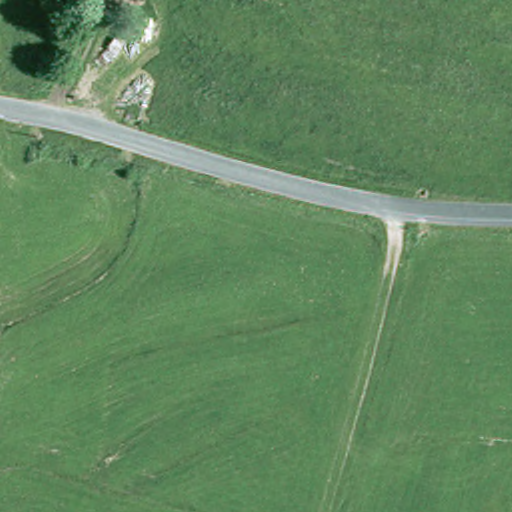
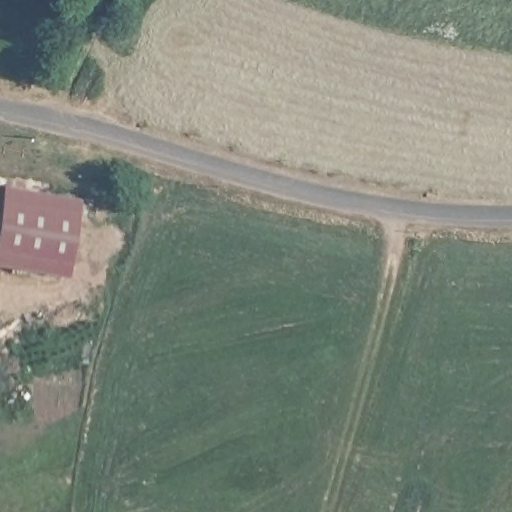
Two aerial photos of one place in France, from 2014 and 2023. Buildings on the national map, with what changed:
new [(2,197),(77,206),(69,270),(0,261),(0,209),(2,197)]

